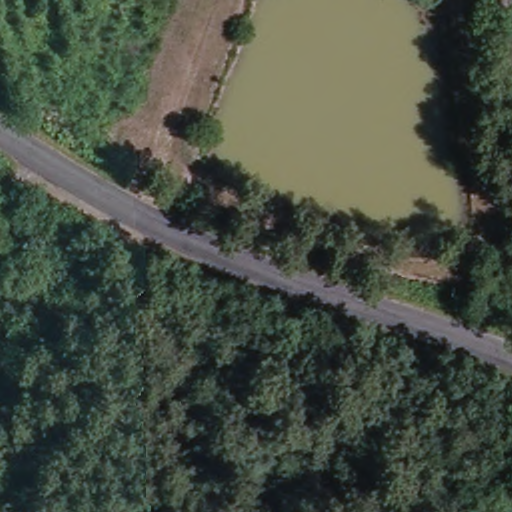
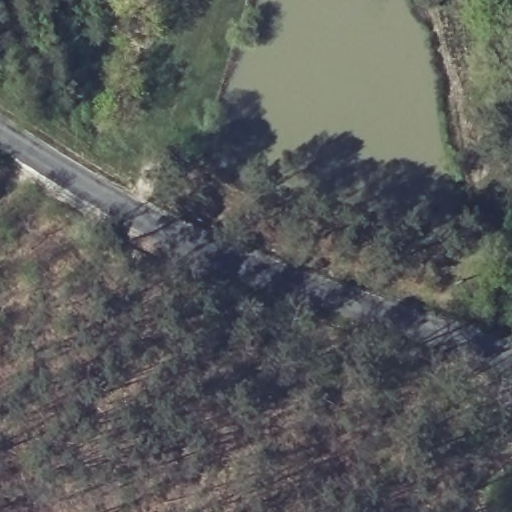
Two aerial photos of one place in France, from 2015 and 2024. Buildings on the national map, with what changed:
[]

